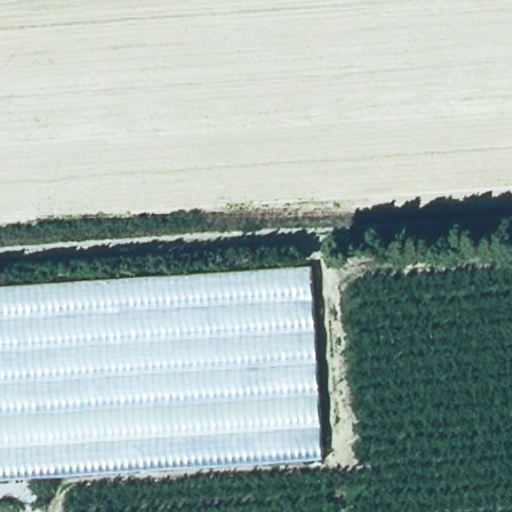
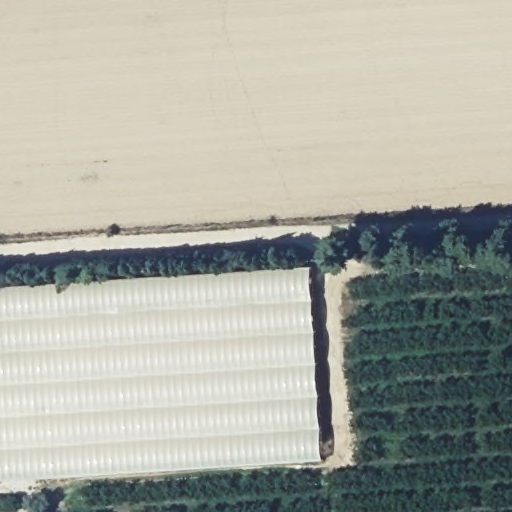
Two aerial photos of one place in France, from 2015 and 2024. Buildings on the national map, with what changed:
unchanged [(324,459),(0,483),(0,287),(307,267),(324,459)]

